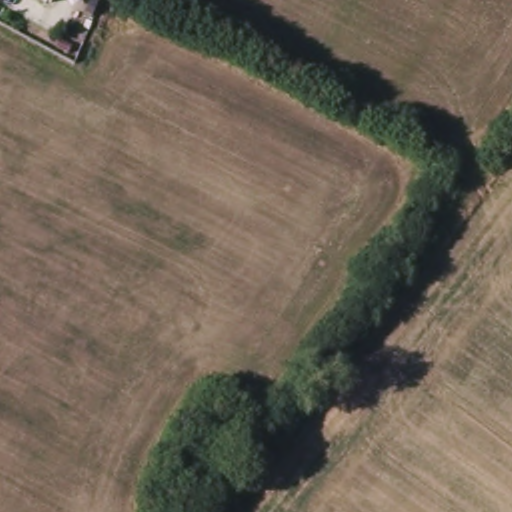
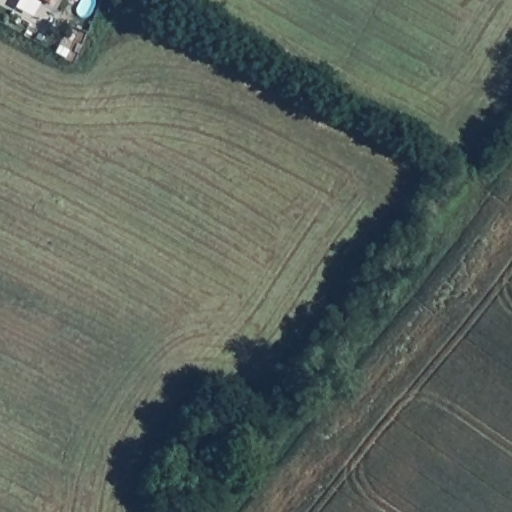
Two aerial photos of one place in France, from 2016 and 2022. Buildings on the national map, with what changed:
unchanged [(49,5),(39,0),(52,0),(49,5)]

